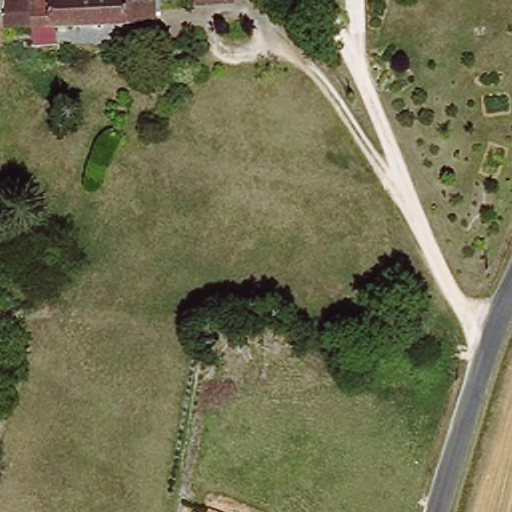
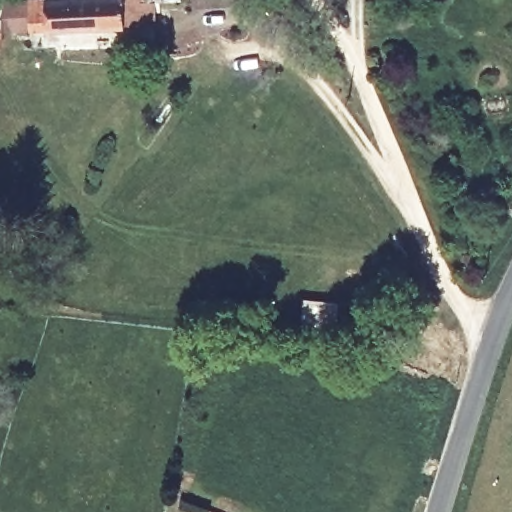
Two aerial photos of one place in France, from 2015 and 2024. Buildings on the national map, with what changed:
unchanged [(0,30),(0,1),(4,1),(5,0),(151,0),(151,28),(0,30)]
unchanged [(201,3),(193,3),(192,0),(227,0),(227,1),(201,3)]

